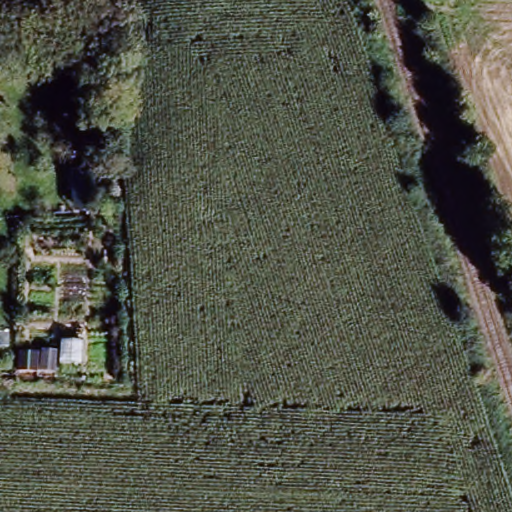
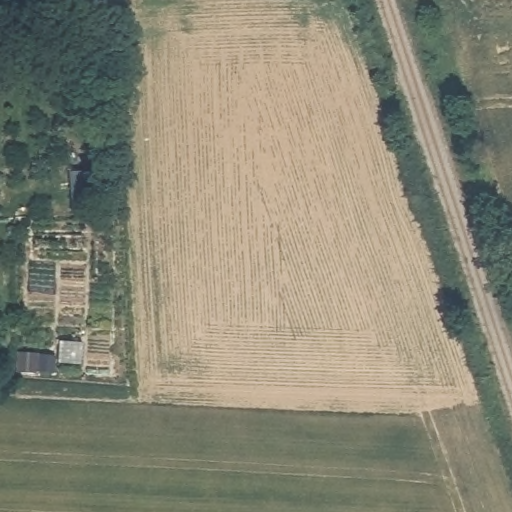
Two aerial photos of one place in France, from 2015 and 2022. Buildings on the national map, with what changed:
unchanged [(72,213),(72,203),(70,173),(93,172),(95,202),(96,212),(72,213)]

